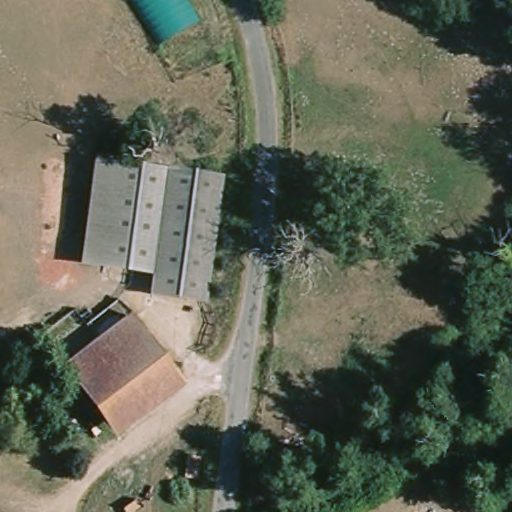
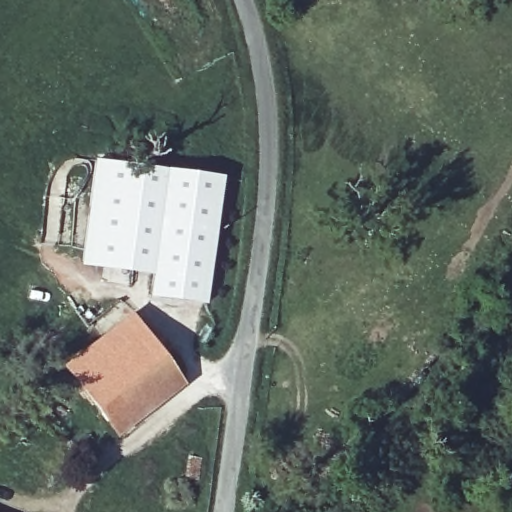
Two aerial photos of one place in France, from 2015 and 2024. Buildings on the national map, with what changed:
new [(199,20),(161,44),(134,0),(187,0),(199,20)]
unchanged [(148,274),(83,266),(94,160),(160,169),(148,274)]
unchanged [(202,303),(145,294),(148,274),(160,169),(219,176),(202,303)]
unchanged [(154,389),(106,424),(65,370),(129,323),(175,385),(160,396),(154,389)]

